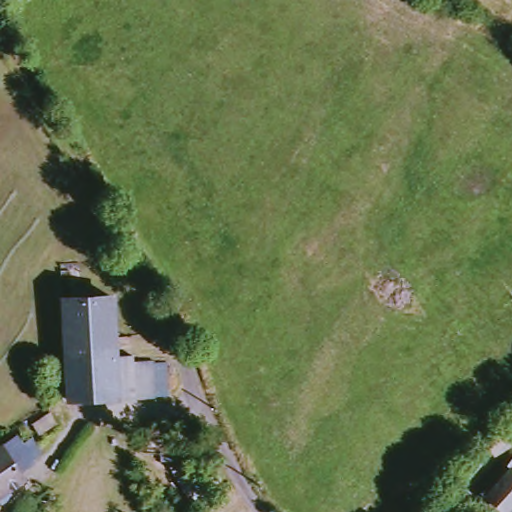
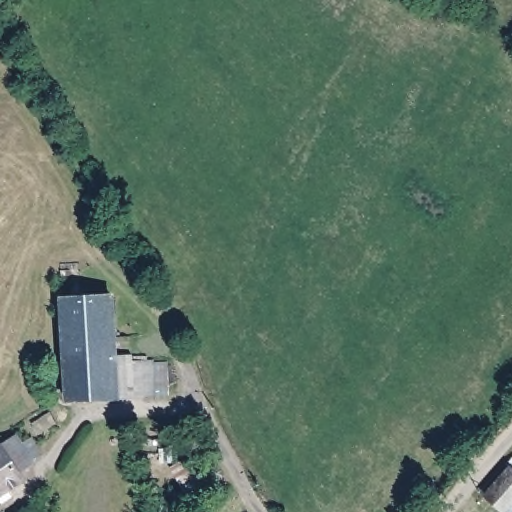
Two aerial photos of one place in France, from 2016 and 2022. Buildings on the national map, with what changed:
unchanged [(72,405),(69,321),(117,320),(120,360),(133,360),(135,366),(158,366),(159,402),(72,405)]
unchanged [(34,462),(38,468),(0,494),(0,448),(25,430),(42,454),(34,462)]
unchanged [(496,487),(512,468),(512,501),(496,487)]

